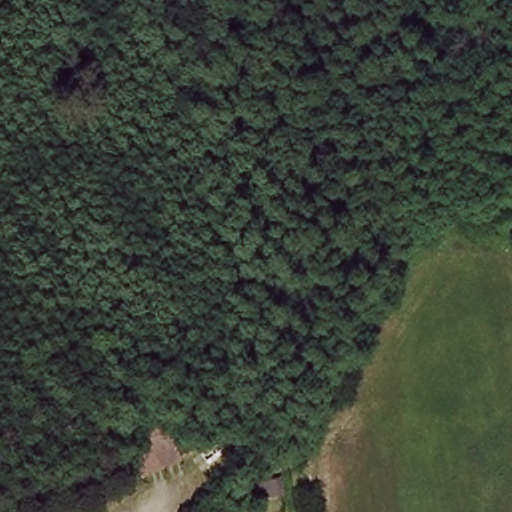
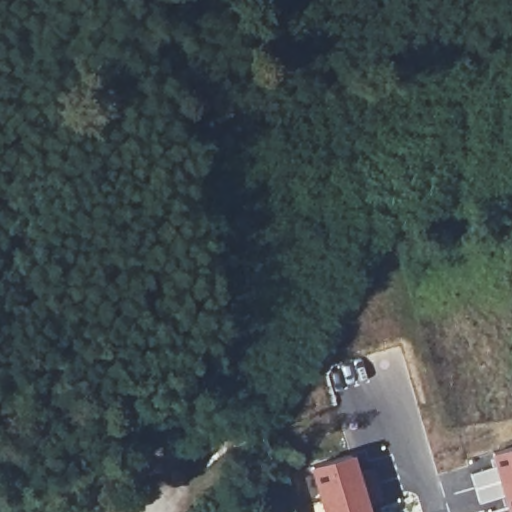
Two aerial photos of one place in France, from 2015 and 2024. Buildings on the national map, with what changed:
unchanged [(133,450),(152,442),(144,421),(164,413),(180,460),(142,475),(133,450)]
new [(469,472),(492,465),(489,452),(512,445),(512,512),(505,512),(500,498),(478,505),(469,472)]
new [(354,452),(371,512),(321,512),(308,466),(354,452)]

